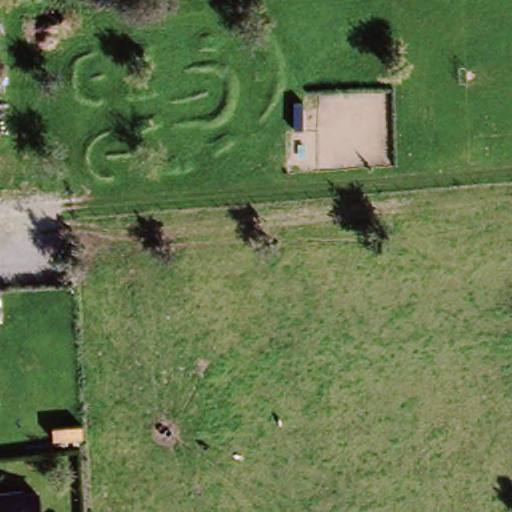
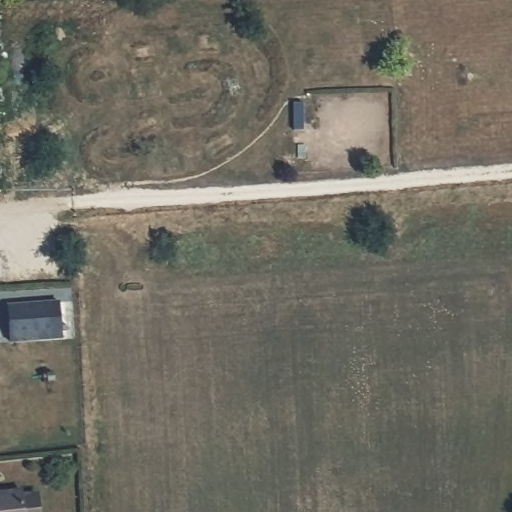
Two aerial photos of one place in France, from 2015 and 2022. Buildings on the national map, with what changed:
new [(60,300),(63,344),(12,348),(7,305),(60,300)]
unchanged [(20,492),(34,491),(36,512),(0,512),(0,488),(20,487),(20,492)]

